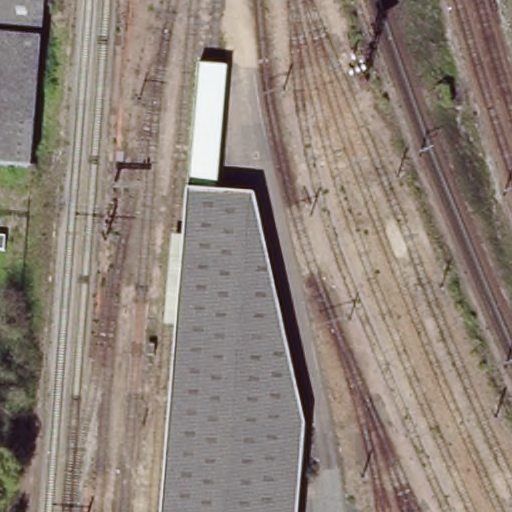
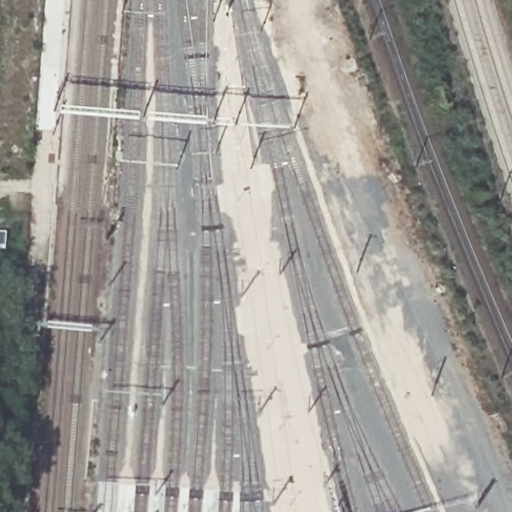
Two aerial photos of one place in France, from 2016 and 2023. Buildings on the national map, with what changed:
demolished [(0,168),(0,0),(44,0),(32,170),(0,168)]
demolished [(218,191),(257,195),(304,423),(299,471),(279,481),(295,512),(157,512),(189,188),(218,191)]

